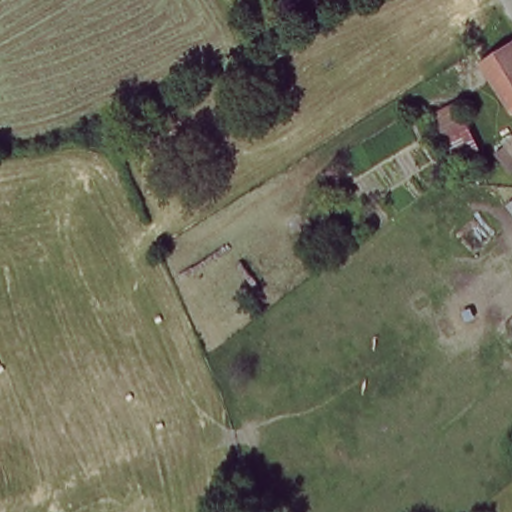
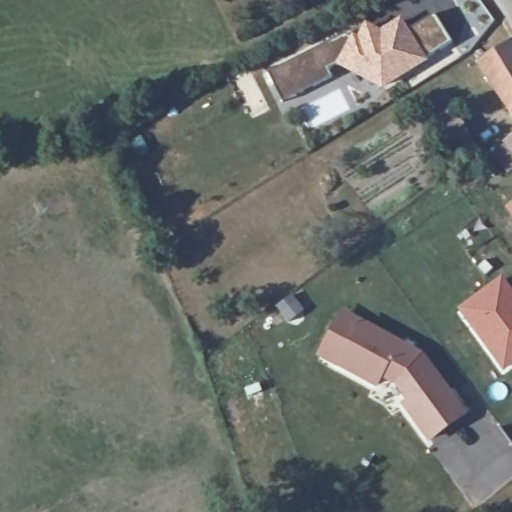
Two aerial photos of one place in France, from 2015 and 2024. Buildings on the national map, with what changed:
new [(349,31),(358,36),(366,22),(381,30),(400,18),(409,30),(435,14),(453,41),(425,58),(428,62),(384,90),(335,65),(326,72),(330,77),(285,102),(267,72),(349,31)]
unchanged [(512,106),(479,61),(510,40),(512,44),(512,106)]
unchanged [(487,155),(460,167),(437,114),(464,102),(487,155)]
new [(512,290),(512,365),(501,373),(453,307),(500,274),(512,290)]
new [(340,308),(422,352),(469,414),(430,443),(400,406),(405,402),(393,387),(382,378),(376,388),(315,356),(340,308)]

